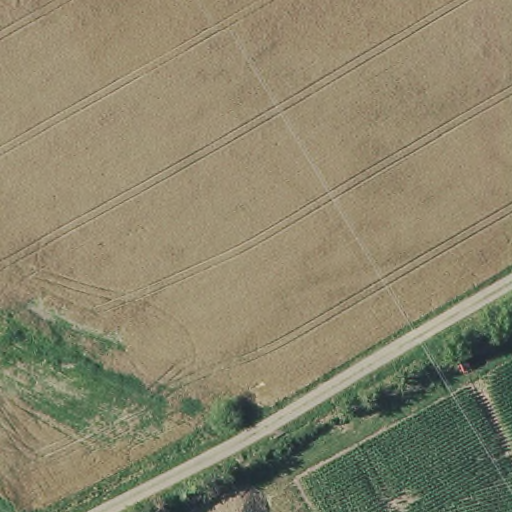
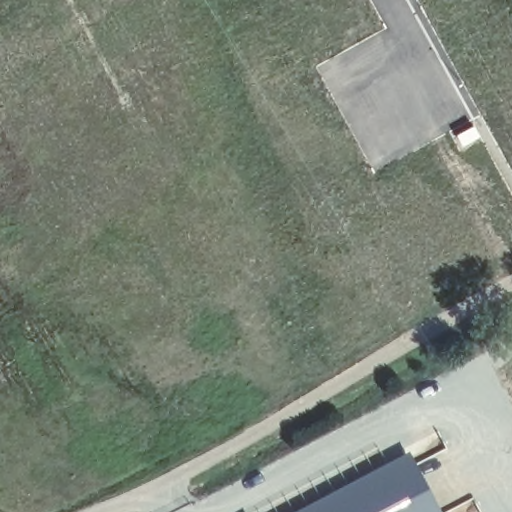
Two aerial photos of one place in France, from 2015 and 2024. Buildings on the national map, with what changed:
new [(410,455),(440,512),(297,512),(410,455)]

